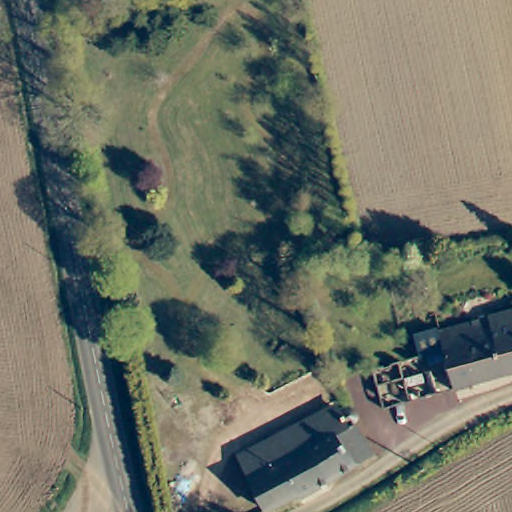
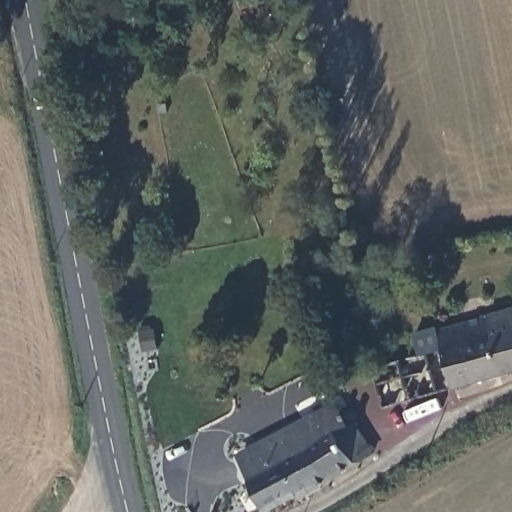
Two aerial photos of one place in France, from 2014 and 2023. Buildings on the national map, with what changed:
unchanged [(488,315),(512,309),(512,380),(449,396),(437,342),(491,327),(488,315)]
unchanged [(294,501),(276,512),(259,512),(238,470),(332,421),(336,428),(349,420),(353,427),(345,431),(364,465),(296,505),(294,501)]

